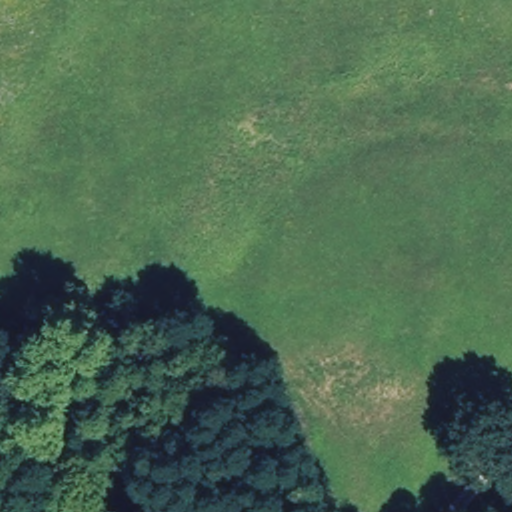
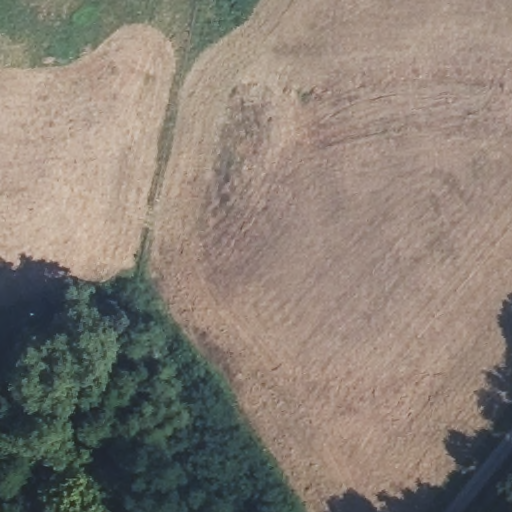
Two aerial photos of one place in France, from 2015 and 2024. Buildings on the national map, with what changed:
[]

